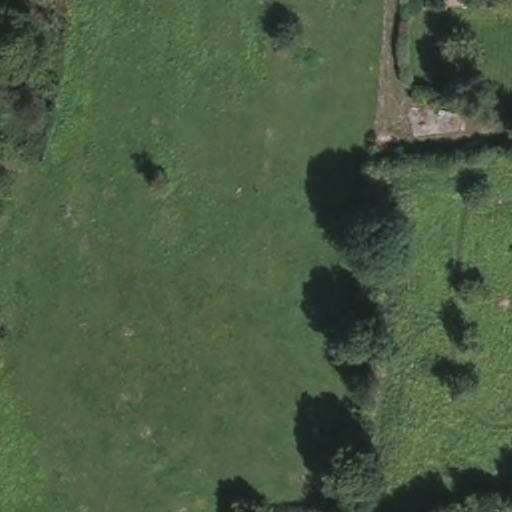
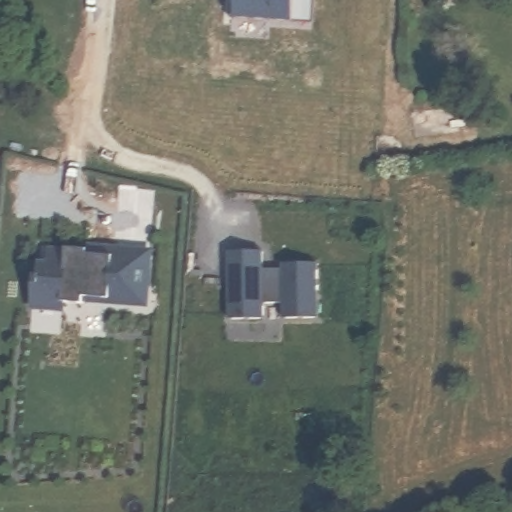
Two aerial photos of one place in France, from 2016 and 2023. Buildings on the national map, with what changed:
new [(227,246),(260,245),(261,258),(316,255),(318,310),(230,313),(227,246)]
new [(145,300),(108,300),(108,295),(82,295),(82,302),(62,301),(61,309),(31,306),(32,275),(38,275),(39,263),(47,264),(48,246),(85,248),(84,252),(110,254),(111,247),(148,249),(145,300)]

